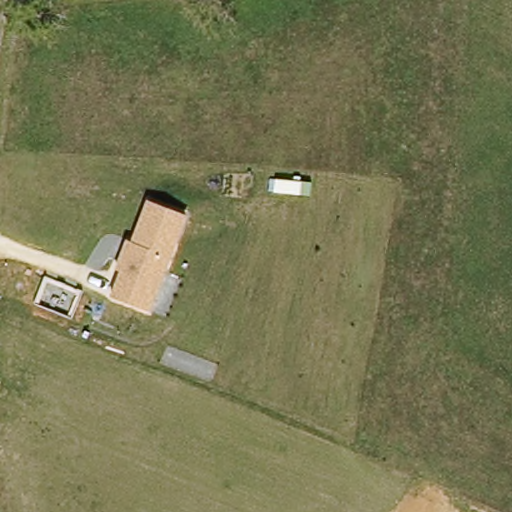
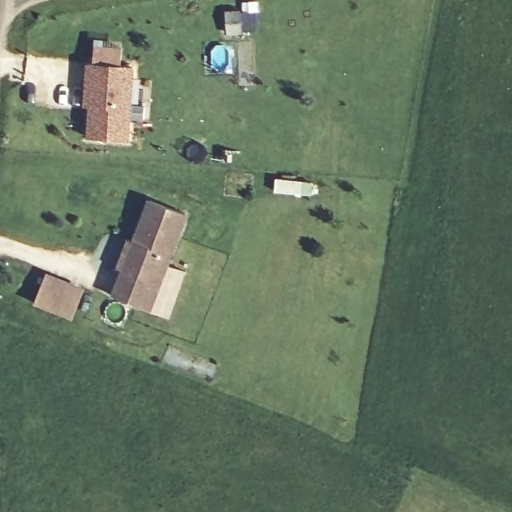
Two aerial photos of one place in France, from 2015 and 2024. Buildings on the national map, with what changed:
new [(130,140),(87,139),(88,106),(85,105),(87,64),(138,66),(130,140)]
unchanged [(190,216),(152,310),(112,294),(122,269),(118,267),(129,238),(135,240),(150,199),(190,216)]
new [(170,266),(187,274),(170,318),(152,310),(170,266)]
new [(73,319),(35,304),(46,273),(87,290),(73,319)]

